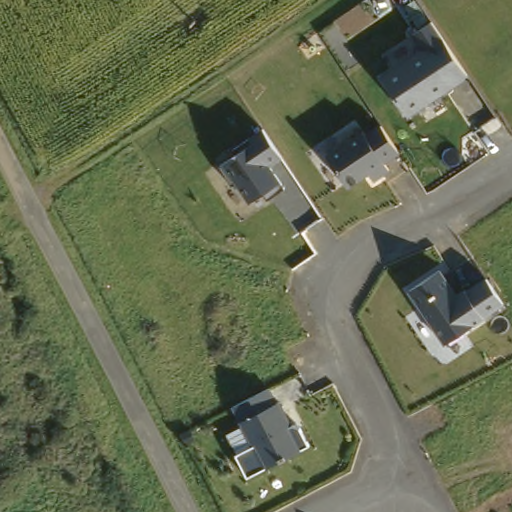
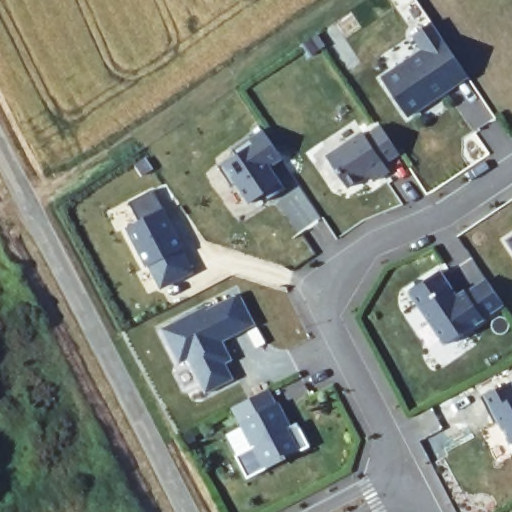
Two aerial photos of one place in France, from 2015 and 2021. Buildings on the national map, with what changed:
unchanged [(414,53),(405,36),(430,24),(466,78),(410,118),(379,78),(414,53)]
unchanged [(325,156),(362,131),(364,135),(380,125),(401,153),(385,166),(389,174),(375,184),(368,176),(347,190),(325,156)]
unchanged [(235,187),(227,190),(214,169),(247,146),(244,141),(263,131),(282,160),(269,168),(280,186),(248,204),(235,187)]
new [(159,192),(197,247),(195,248),(209,269),(179,288),(165,267),(163,269),(138,233),(149,225),(136,208),(159,192)]
unchanged [(408,292),(440,269),(460,295),(486,278),(504,307),(444,345),(408,292)]
new [(256,324),(223,341),(233,360),(225,365),(232,381),(205,392),(187,359),(180,363),(161,329),(204,305),(206,310),(239,294),(256,324)]
new [(512,382),(512,443),(495,409),(491,411),(483,396),(512,382)]
unchanged [(266,392),(273,406),(277,404),(290,429),(295,428),(306,448),(246,478),(234,456),(250,448),(231,410),(266,392)]

